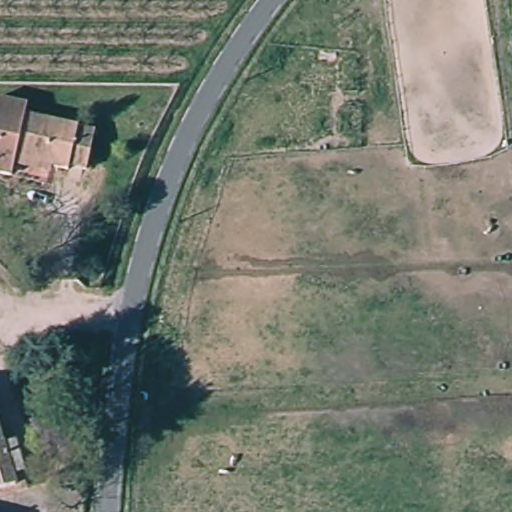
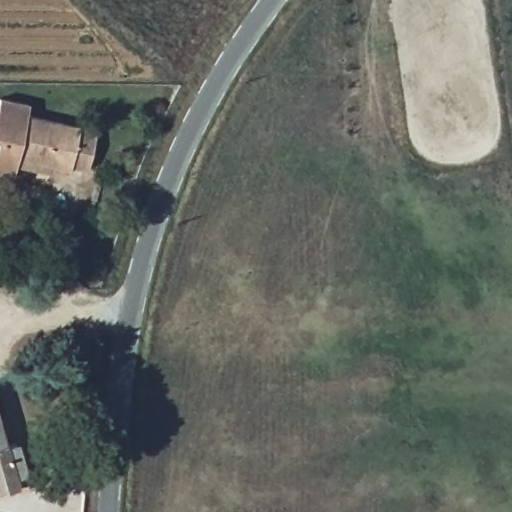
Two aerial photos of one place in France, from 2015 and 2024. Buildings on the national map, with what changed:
unchanged [(29,116),(96,131),(87,174),(57,169),(52,181),(17,172),(14,181),(0,177),(0,99),(29,102),(29,116)]
unchanged [(25,440),(38,481),(0,492),(0,398),(12,442),(25,440)]
unchanged [(86,493),(67,498),(62,482),(83,478),(86,493)]

